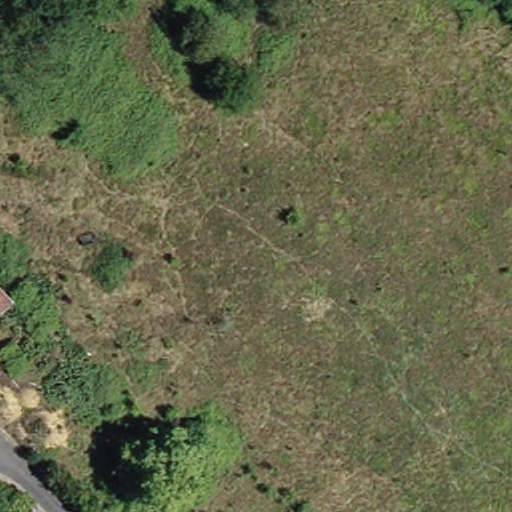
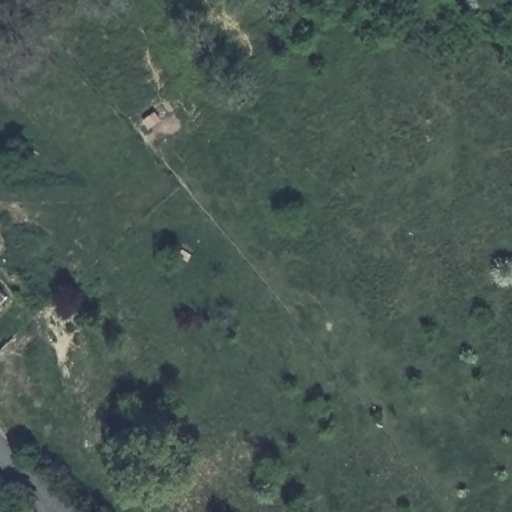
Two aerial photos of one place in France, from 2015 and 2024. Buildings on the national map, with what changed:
unchanged [(0,295),(0,277),(9,286),(0,295)]

